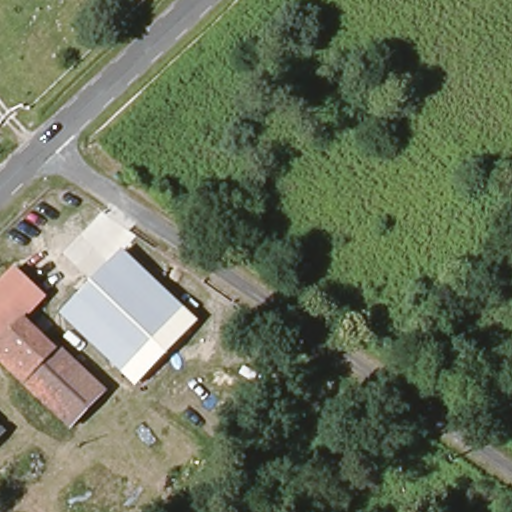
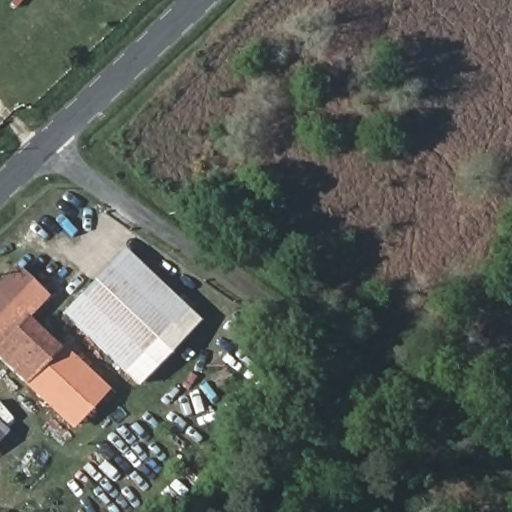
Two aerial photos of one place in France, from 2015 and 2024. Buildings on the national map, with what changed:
unchanged [(70,313),(132,251),(187,306),(127,370),(70,313)]
unchanged [(20,271),(49,302),(30,321),(0,293),(0,290),(20,271)]
unchanged [(31,381),(0,351),(0,293),(30,321),(61,351),(31,381)]
unchanged [(109,397),(79,428),(31,381),(61,351),(109,397)]
unchanged [(0,437),(0,424),(7,430),(0,437)]

